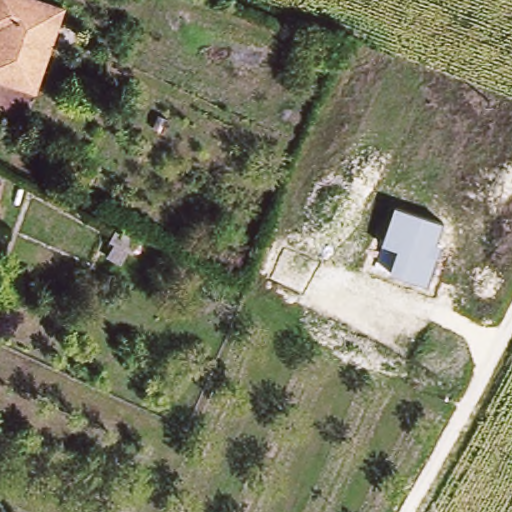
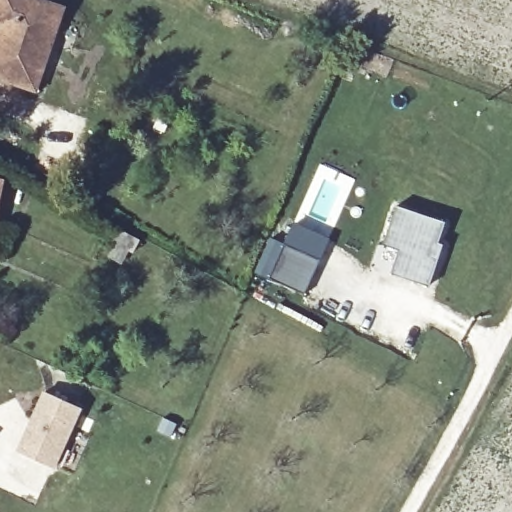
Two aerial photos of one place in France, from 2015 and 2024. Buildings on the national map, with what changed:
unchanged [(0,82),(0,32),(4,21),(0,20),(0,1),(0,0),(33,0),(67,14),(34,95),(0,82)]
unchanged [(444,221),(437,242),(444,245),(430,287),(392,275),(399,250),(383,245),(395,206),(444,221)]
new [(269,277),(294,223),(328,238),(304,292),(269,277)]
unchanged [(120,232),(142,245),(132,264),(110,252),(120,232)]
new [(44,391),(81,407),(56,467),(18,450),(44,391)]

